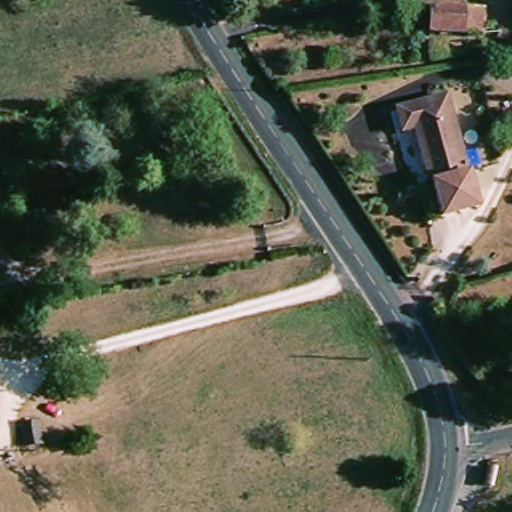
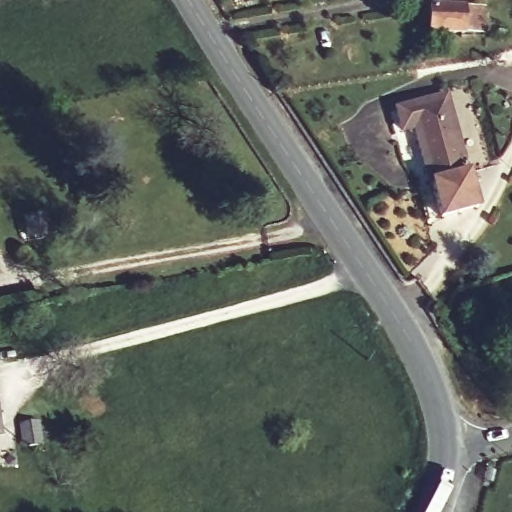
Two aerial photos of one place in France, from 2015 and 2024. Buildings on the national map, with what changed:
unchanged [(483,8),(483,33),(427,34),(427,6),(440,7),(483,8)]
unchanged [(417,130),(402,134),(394,111),(446,94),(471,173),(436,184),(432,185),(417,130)]
unchanged [(471,173),(481,206),(446,217),(436,184),(471,173)]
unchanged [(29,240),(20,242),(18,232),(27,231),(26,224),(45,221),(48,243),(29,247),(29,240)]
unchanged [(35,430),(46,455),(32,462),(21,436),(35,430)]

